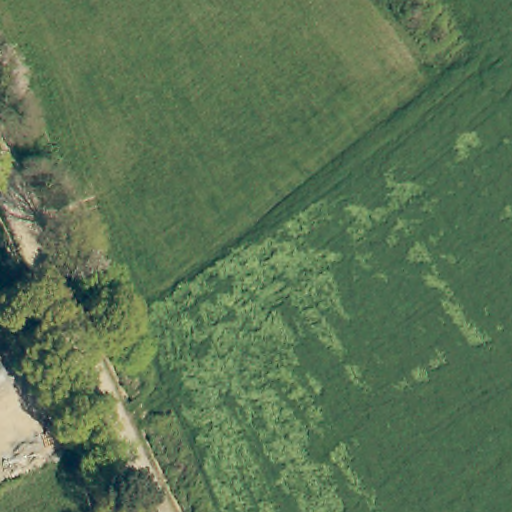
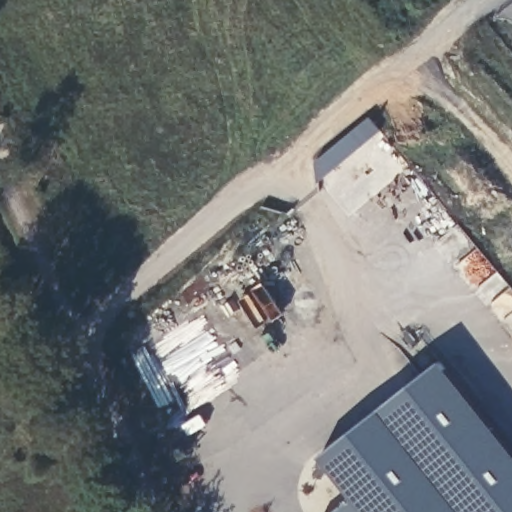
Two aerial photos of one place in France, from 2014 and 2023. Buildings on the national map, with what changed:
new [(318,183),(315,162),(370,117),(383,132),(318,183)]
new [(352,498),(321,456),(441,362),(512,452),(512,512),(336,512),(352,498)]

